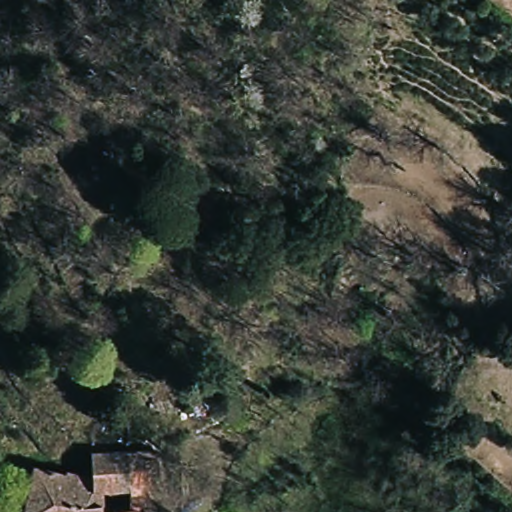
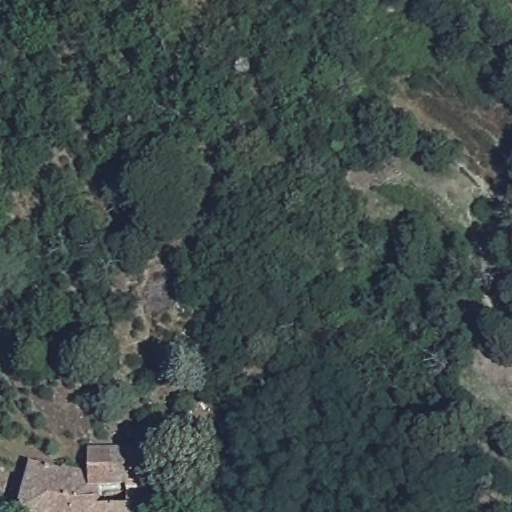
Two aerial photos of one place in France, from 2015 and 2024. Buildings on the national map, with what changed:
unchanged [(91,469),(93,446),(153,447),(154,505),(105,500),(104,512),(31,512),(31,465),(91,469)]

